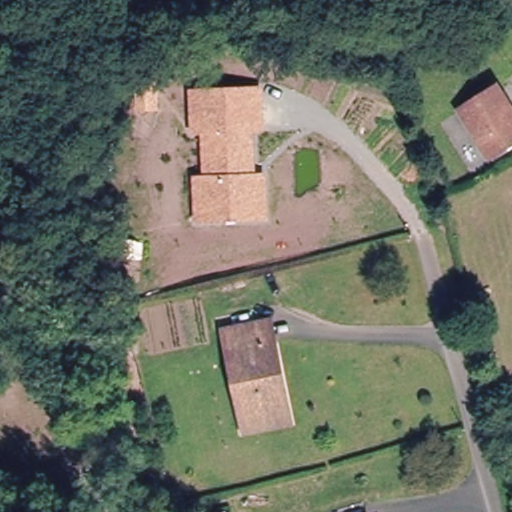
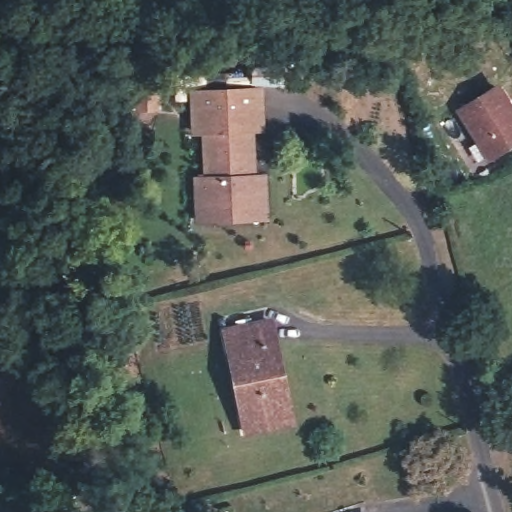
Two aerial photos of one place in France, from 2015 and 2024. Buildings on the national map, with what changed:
unchanged [(263,88),(265,133),(255,134),(257,174),(265,174),(268,222),(196,225),(193,177),(203,175),(201,137),(192,137),(189,90),(263,88)]
unchanged [(495,91),(512,118),(512,149),(487,163),(455,115),(495,91)]
unchanged [(242,433),(239,417),(218,329),(261,317),(266,336),(284,406),(288,421),(242,433)]

